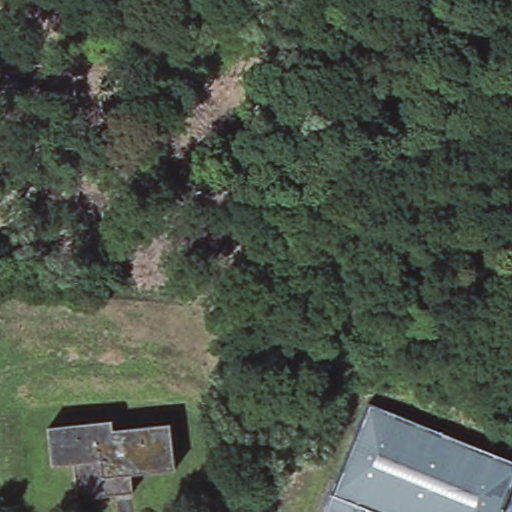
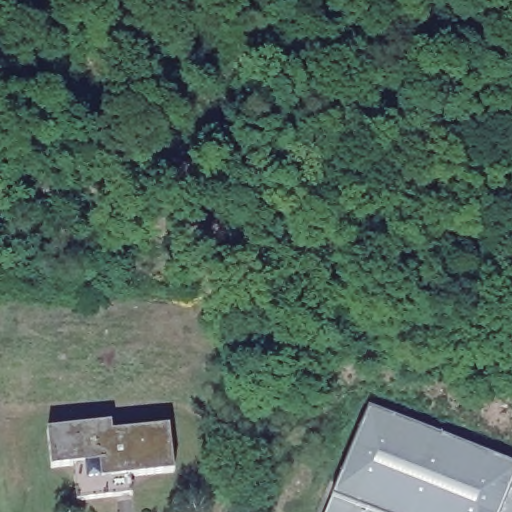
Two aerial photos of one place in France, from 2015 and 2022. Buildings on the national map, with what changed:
unchanged [(355,441),(370,405),(512,463),(512,512),(325,512),(355,441)]
unchanged [(110,421),(112,430),(168,424),(173,471),(130,475),(132,493),(77,499),(73,464),(50,467),(45,428),(110,421)]

